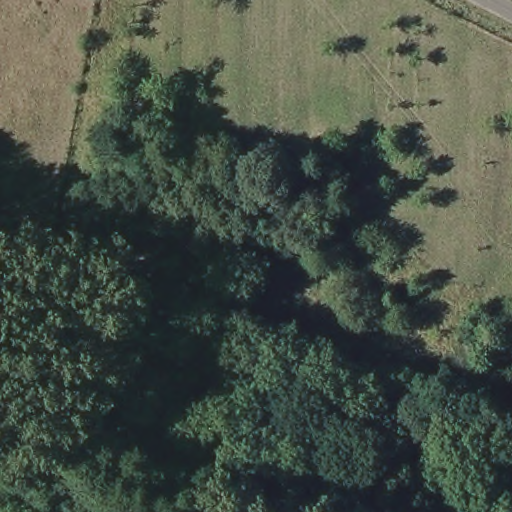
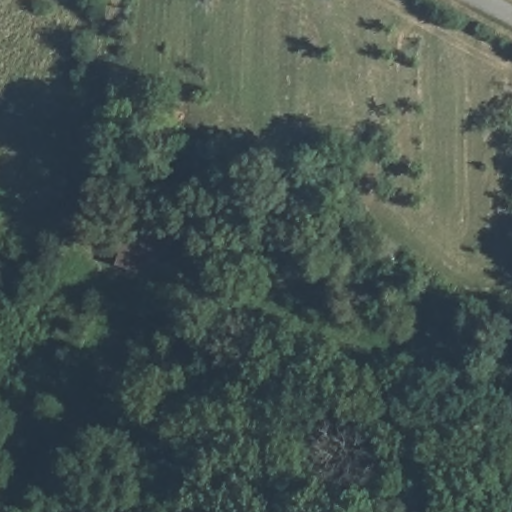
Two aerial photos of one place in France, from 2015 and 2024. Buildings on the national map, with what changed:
unchanged [(171,243),(156,283),(116,268),(131,228),(171,243)]

